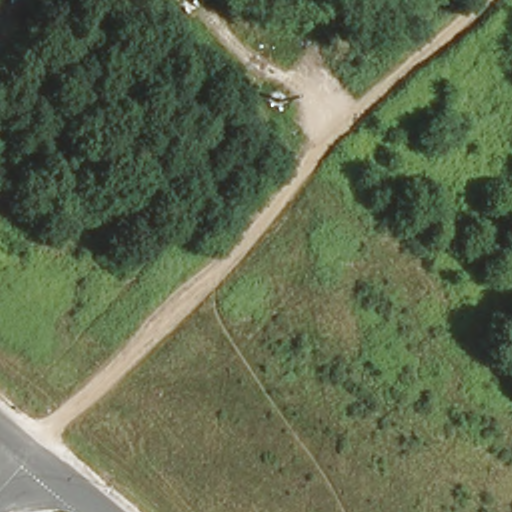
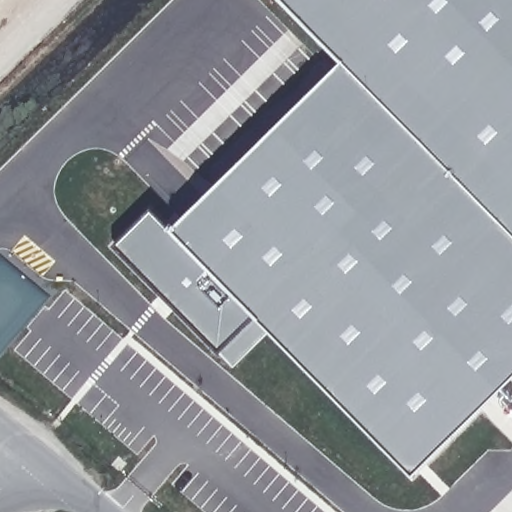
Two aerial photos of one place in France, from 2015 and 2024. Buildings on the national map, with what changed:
new [(281,0),(512,0),(512,378),(412,477),(270,330),(233,367),(219,354),(114,246),(151,210),(171,229),(341,62),(281,0)]

